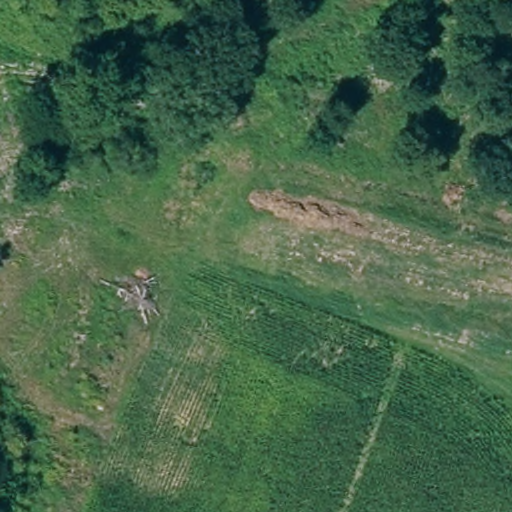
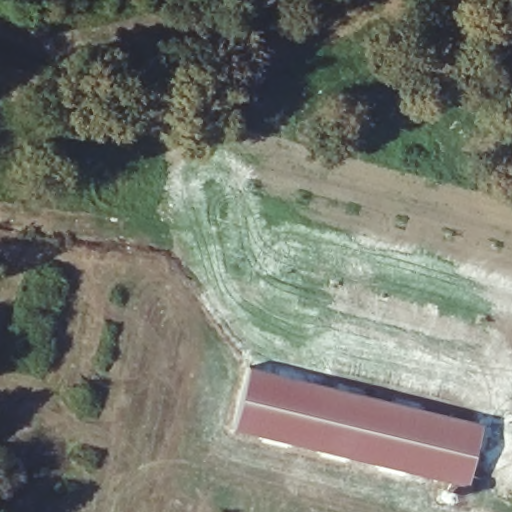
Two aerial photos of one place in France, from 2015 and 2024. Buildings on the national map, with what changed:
new [(247,373),(481,426),(468,488),(234,437),(247,373)]

